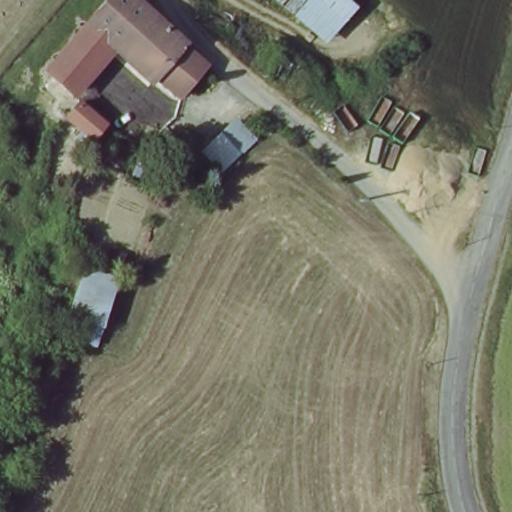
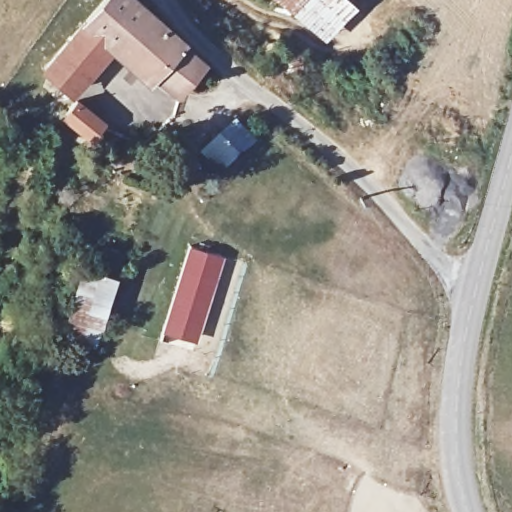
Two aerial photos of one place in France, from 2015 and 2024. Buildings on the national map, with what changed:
unchanged [(107,0),(134,0),(166,29),(193,52),(208,64),(175,103),(113,50),(85,26),(107,0)]
unchanged [(358,7),(327,44),(273,0),(349,0),(358,7)]
unchanged [(71,98),(44,73),(85,26),(113,50),(71,98)]
unchanged [(70,120),(80,108),(106,130),(96,142),(70,120)]
unchanged [(264,138),(235,172),(227,166),(215,156),(245,121),(256,130),(264,138)]
new [(186,242),(223,254),(196,342),(158,328),(186,242)]
unchanged [(100,327),(95,346),(61,340),(65,313),(81,272),(119,272),(100,327)]

